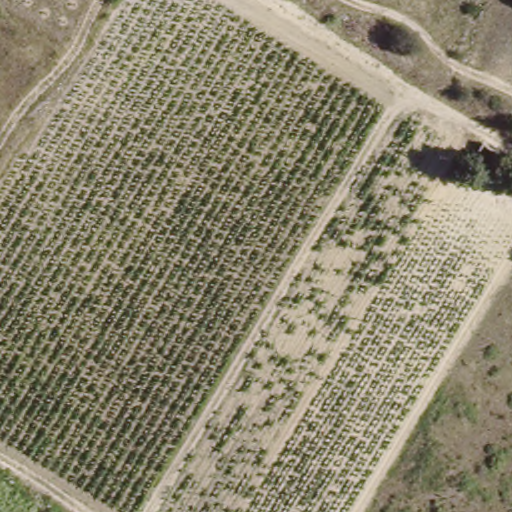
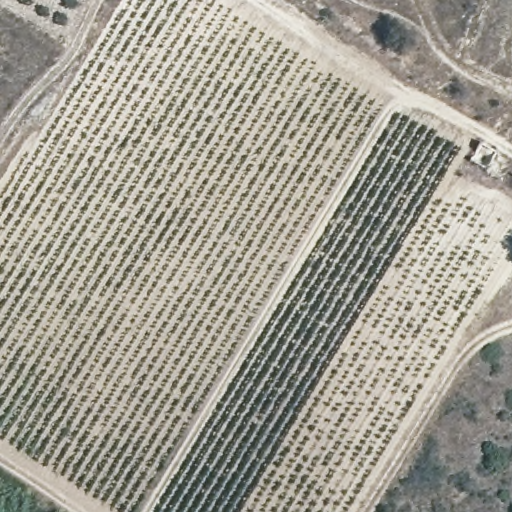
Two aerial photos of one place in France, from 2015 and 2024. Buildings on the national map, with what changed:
unchanged [(492,145),(501,152),(506,155),(498,170),(483,159),(492,145)]

